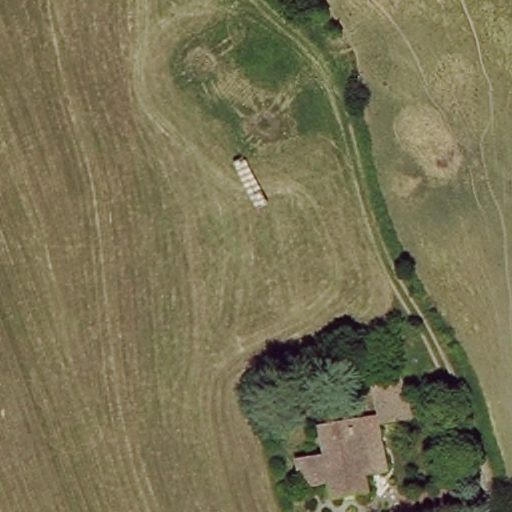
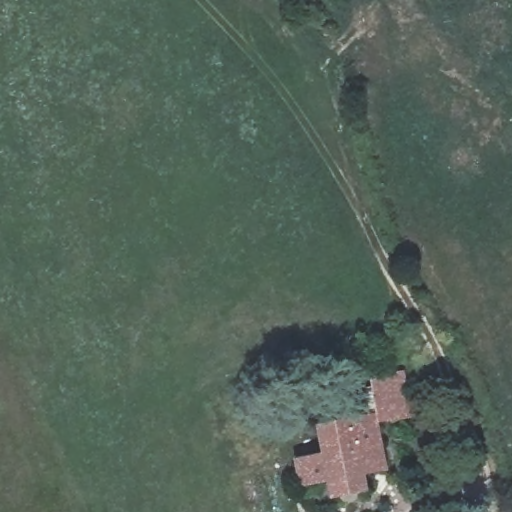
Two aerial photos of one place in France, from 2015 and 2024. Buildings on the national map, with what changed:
unchanged [(403,369),(415,405),(386,411),(380,374),(403,369)]
unchanged [(357,416),(372,486),(339,490),(335,476),(307,478),(302,455),(330,451),(325,422),(357,416)]

